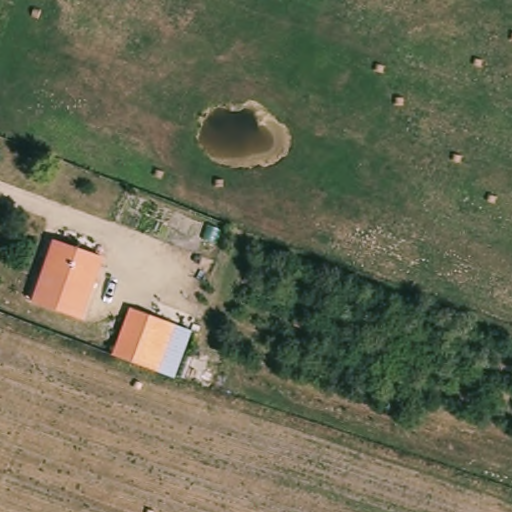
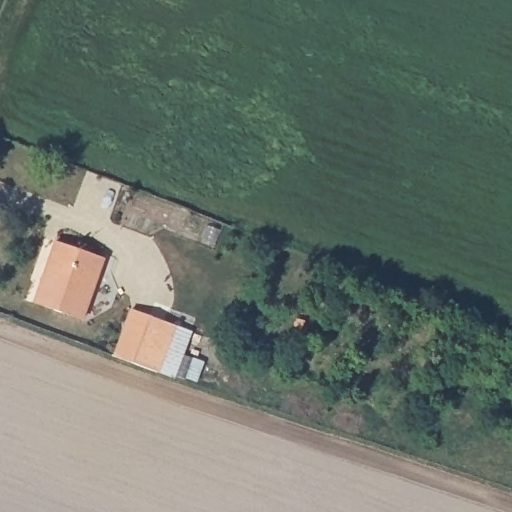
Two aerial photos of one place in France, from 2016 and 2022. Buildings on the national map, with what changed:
unchanged [(103,264),(80,322),(35,304),(57,247),(103,264)]
unchanged [(148,317),(169,326),(151,372),(130,363),(148,317)]
unchanged [(197,336),(179,383),(151,372),(169,326),(197,336)]

